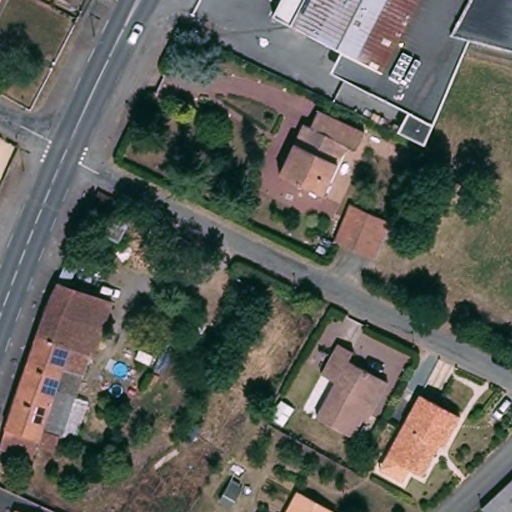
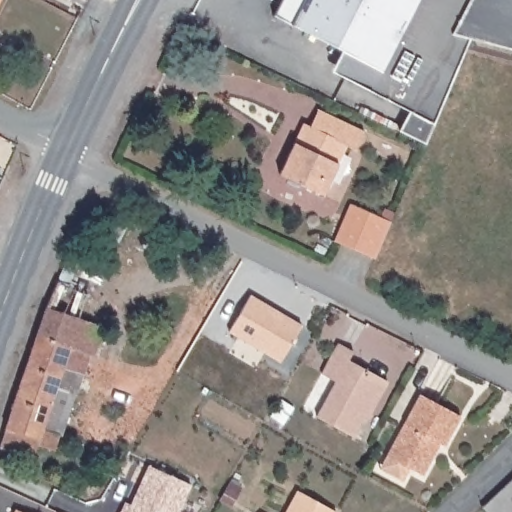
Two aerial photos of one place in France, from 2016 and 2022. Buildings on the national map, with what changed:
unchanged [(0,0),(1,0),(0,1),(0,0)]
unchanged [(335,76),(321,70),(332,49),(264,13),(271,0),(512,0),(512,55),(480,47),(474,61),(469,73),(461,89),(441,135),(433,152),(413,143),(387,130),(398,110),(335,76)]
unchanged [(302,125),(310,128),(317,114),(365,136),(355,158),(345,154),(322,200),(276,178),(302,125)]
unchanged [(100,192),(135,210),(129,223),(93,207),(100,192)]
unchanged [(330,240),(346,205),(388,224),(372,259),(330,240)]
unchanged [(58,285),(113,305),(105,329),(47,308),(58,285)]
new [(251,296),(302,327),(280,363),(229,332),(251,296)]
unchanged [(21,385),(36,340),(40,330),(47,308),(105,329),(95,358),(89,356),(83,376),(76,395),(62,439),(59,438),(54,451),(39,446),(34,460),(0,448),(18,394),(21,385)]
unchanged [(368,418),(363,415),(353,435),(318,416),(336,382),(320,373),(336,343),(352,351),(348,360),(382,377),(388,380),(368,418)]
unchanged [(417,393),(458,413),(442,445),(437,442),(421,473),(385,455),(417,393)]
new [(127,505),(132,508),(150,468),(192,487),(181,512),(124,512),(127,505)]
unchanged [(481,509),(512,479),(512,512),(484,512),(481,509)]
unchanged [(301,484),(340,505),(337,512),(287,512),(301,484)]
unchanged [(17,511),(20,512),(17,512),(17,511)]

